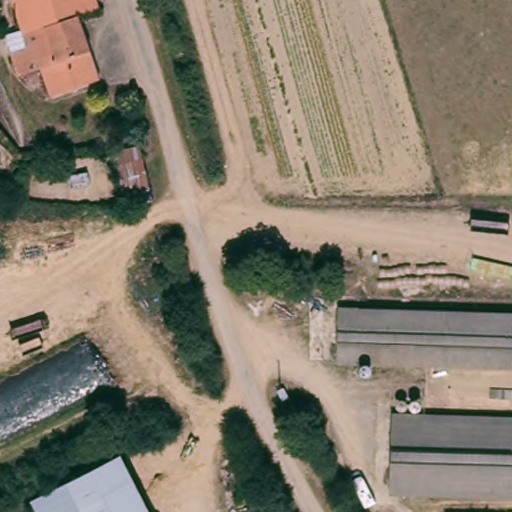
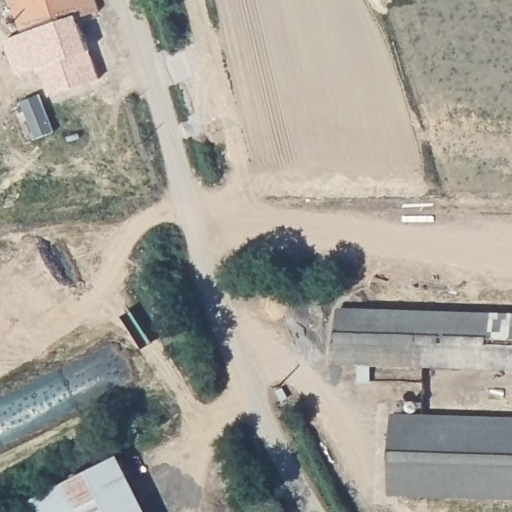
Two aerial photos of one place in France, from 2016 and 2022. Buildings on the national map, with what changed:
unchanged [(97,11),(77,18),(27,35),(26,36),(22,34),(11,0),(94,0),(97,11)]
unchanged [(99,79),(51,94),(40,65),(17,72),(10,49),(25,44),(22,34),(26,36),(27,35),(77,18),(99,79)]
unchanged [(148,202),(122,207),(110,149),(138,143),(148,202)]
unchanged [(512,369),(336,366),(336,310),(512,314),(512,369)]
unchanged [(512,494),(391,492),(391,420),(512,421),(512,494)]
unchanged [(33,512),(27,501),(121,454),(150,512),(33,512)]

